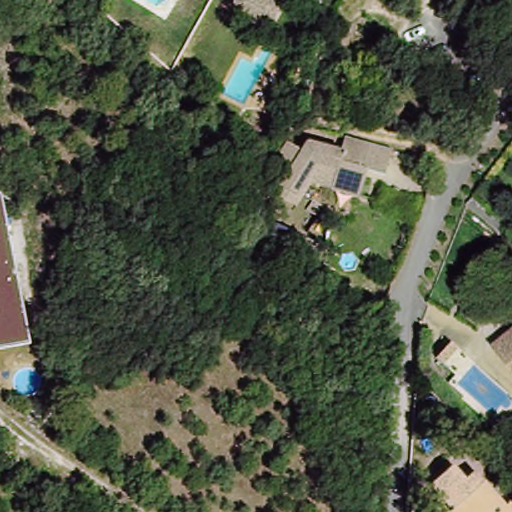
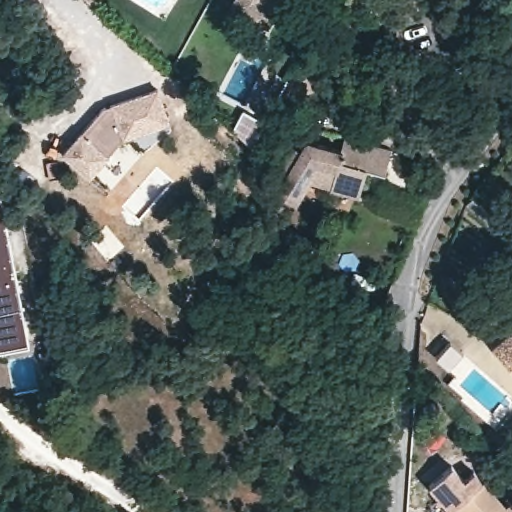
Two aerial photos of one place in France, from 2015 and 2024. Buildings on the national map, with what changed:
unchanged [(266,25),(230,5),(233,0),(275,0),(279,2),(266,25)]
unchanged [(260,72),(281,84),(261,119),(240,108),(260,72)]
new [(61,153),(80,131),(82,133),(105,106),(111,106),(110,103),(158,88),(169,122),(122,137),(107,154),(110,155),(91,176),(61,153)]
unchanged [(298,207),(293,204),(277,193),(291,172),(277,163),(291,143),(304,151),(310,142),(345,152),(349,139),(395,152),(387,176),(368,171),(360,168),(358,173),(366,175),(360,196),(332,188),(313,183),(298,207)]
unchanged [(0,348),(0,189),(24,344),(0,348)]
unchanged [(512,332),(512,368),(494,347),(512,332)]
unchanged [(471,366),(457,381),(436,362),(450,348),(471,366)]
unchanged [(431,490),(453,469),(466,484),(476,476),(485,485),(455,512),(451,512),(431,490)]
unchanged [(511,506),(512,507),(512,512),(455,512),(485,485),(506,509),(511,506)]

